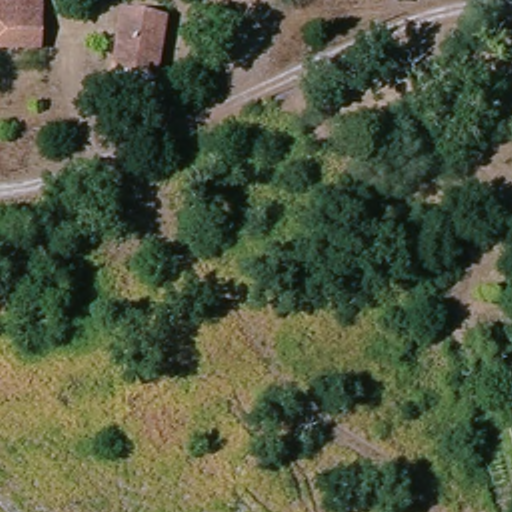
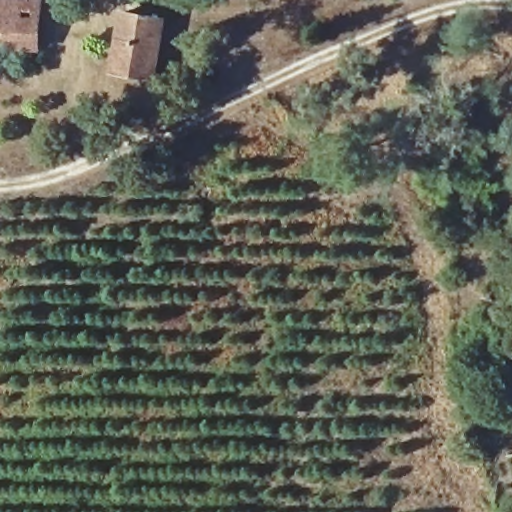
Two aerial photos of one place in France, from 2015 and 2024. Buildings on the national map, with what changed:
unchanged [(39,52),(0,55),(0,5),(51,1),(52,22),(53,51),(39,52)]
unchanged [(167,20),(159,80),(117,75),(125,15),(167,20)]

